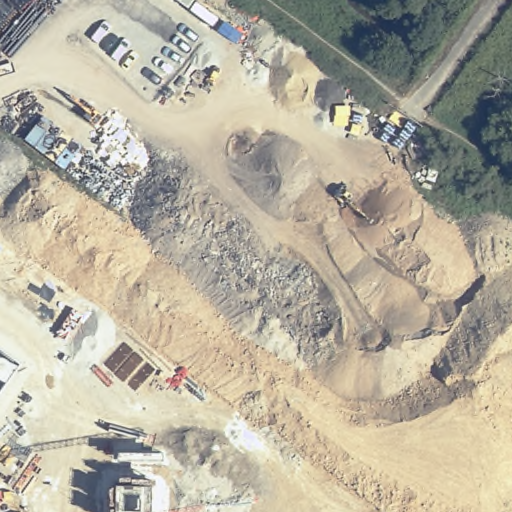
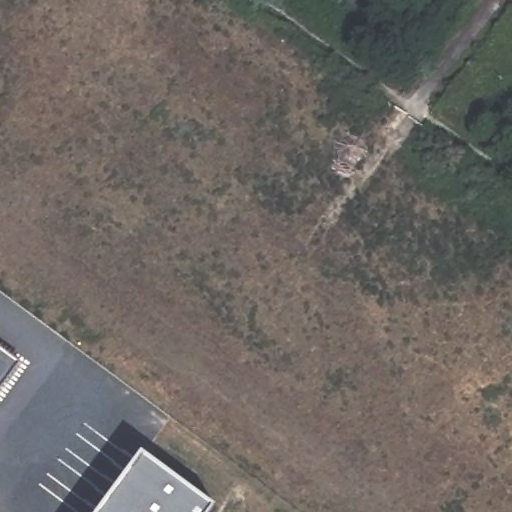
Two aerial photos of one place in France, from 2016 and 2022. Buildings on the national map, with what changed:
unchanged [(20,364),(0,390),(0,348),(20,364)]
new [(125,454),(195,506),(191,512),(83,512),(125,454)]

